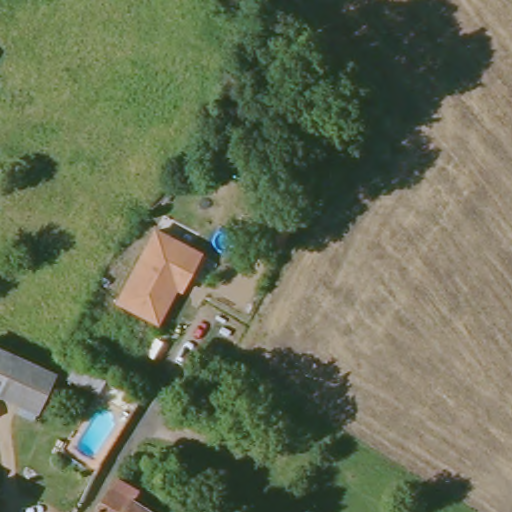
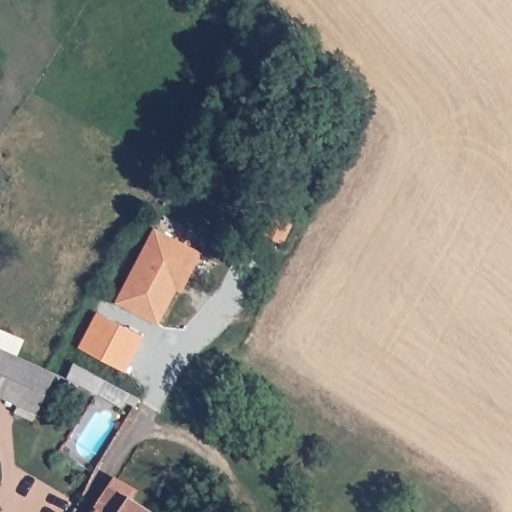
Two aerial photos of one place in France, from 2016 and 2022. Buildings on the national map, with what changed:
unchanged [(178,286),(165,310),(159,322),(119,301),(128,285),(156,230),(202,253),(190,275),(183,288),(178,286)]
new [(142,337),(124,373),(79,350),(98,315),(142,337)]
unchanged [(52,377),(33,415),(13,407),(0,402),(0,355),(45,375),(52,377)]
unchanged [(98,499),(112,480),(133,490),(130,496),(150,512),(89,512),(91,508),(98,499)]

